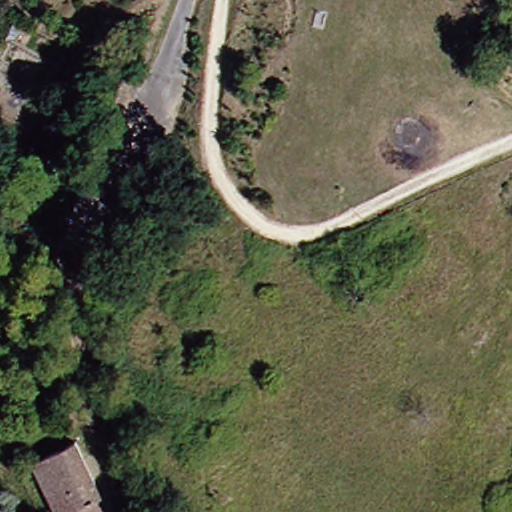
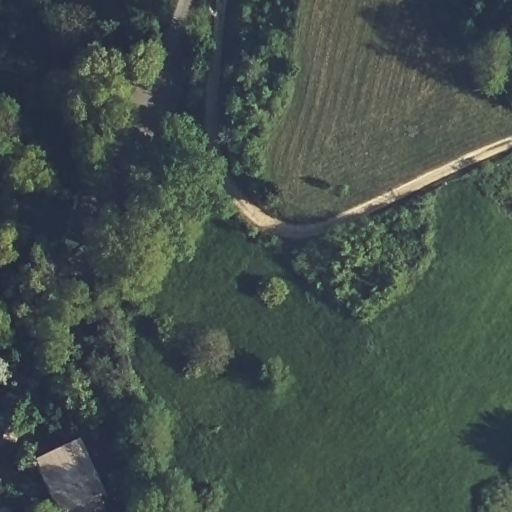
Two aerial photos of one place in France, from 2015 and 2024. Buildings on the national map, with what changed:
unchanged [(0,9),(0,0),(8,0),(19,6),(12,16),(0,9)]
unchanged [(103,496),(97,499),(103,512),(61,512),(33,460),(75,441),(103,496)]
unchanged [(136,506),(139,512),(121,512),(120,511),(136,506)]

